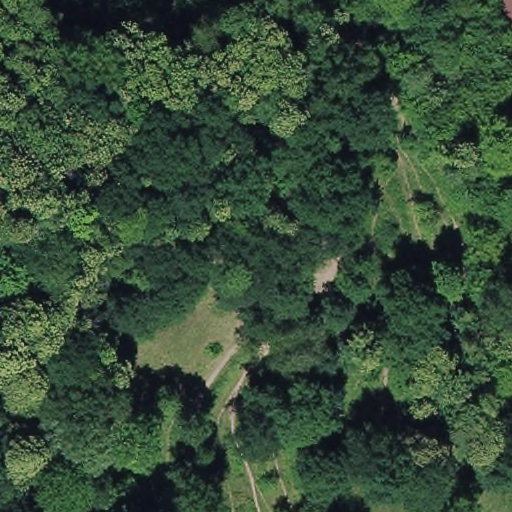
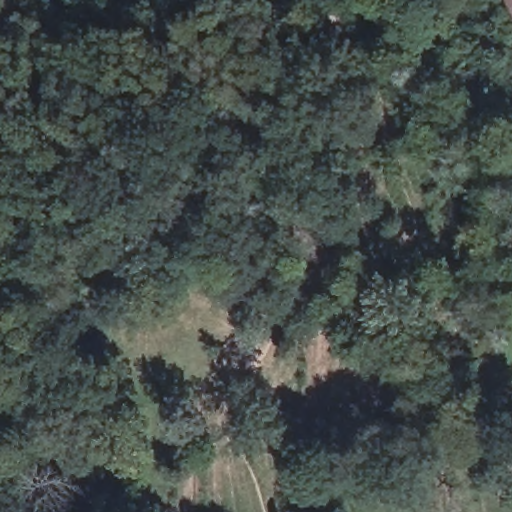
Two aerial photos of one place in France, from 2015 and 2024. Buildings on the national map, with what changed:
unchanged [(501,0),(512,0),(512,24),(501,0)]

